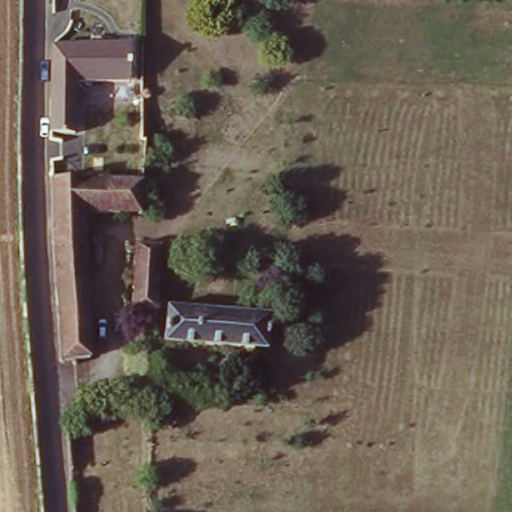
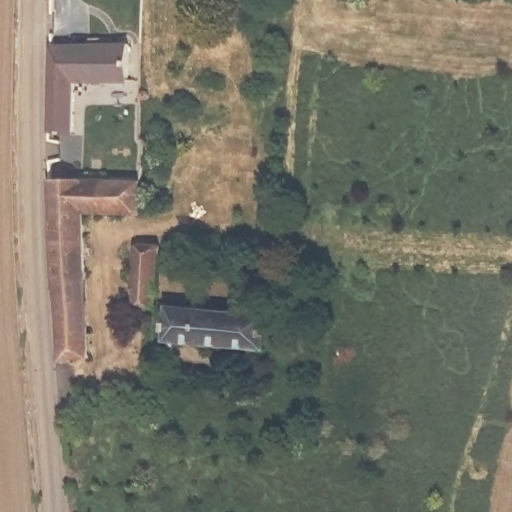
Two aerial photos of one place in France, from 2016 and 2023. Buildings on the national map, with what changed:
unchanged [(74,83),(75,136),(51,137),(50,47),(76,45),(127,47),(128,62),(142,64),(142,86),(74,83)]
unchanged [(82,178),(82,229),(86,360),(59,361),(57,177),(82,178)]
unchanged [(139,180),(140,231),(82,229),(82,178),(139,180)]
unchanged [(169,180),(171,231),(140,231),(139,180),(151,180),(169,180)]
unchanged [(158,317),(130,314),(129,250),(156,251),(158,317)]
unchanged [(266,355),(166,344),(167,308),(271,319),(266,355)]

